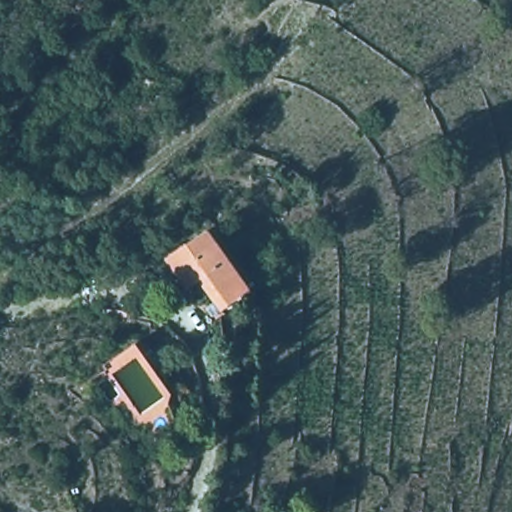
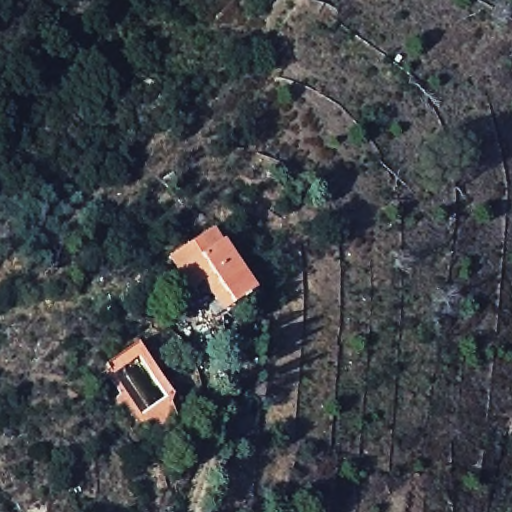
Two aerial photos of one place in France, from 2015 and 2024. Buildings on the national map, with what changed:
unchanged [(225,310),(208,283),(187,297),(166,265),(215,233),(253,292),(225,310)]

